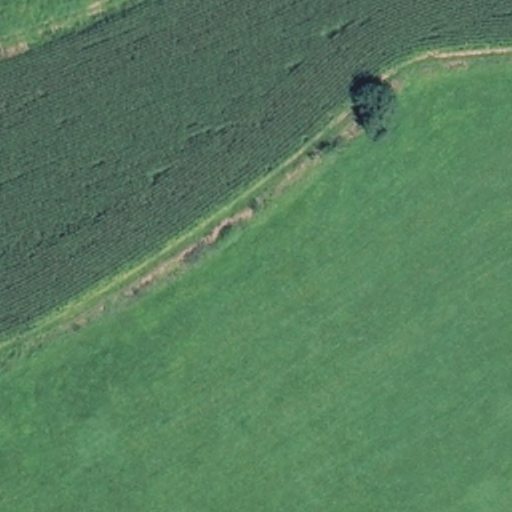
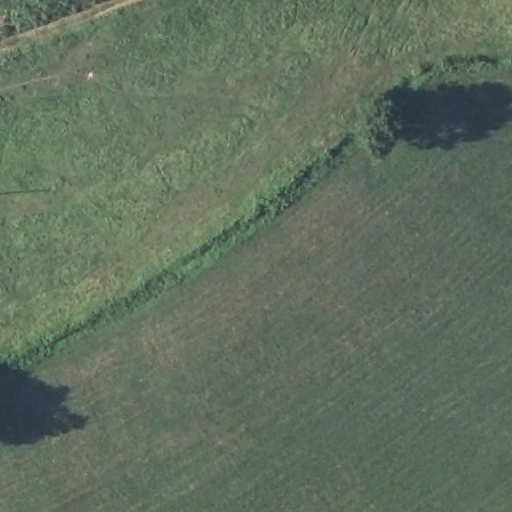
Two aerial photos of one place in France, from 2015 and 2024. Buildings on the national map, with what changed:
[]

